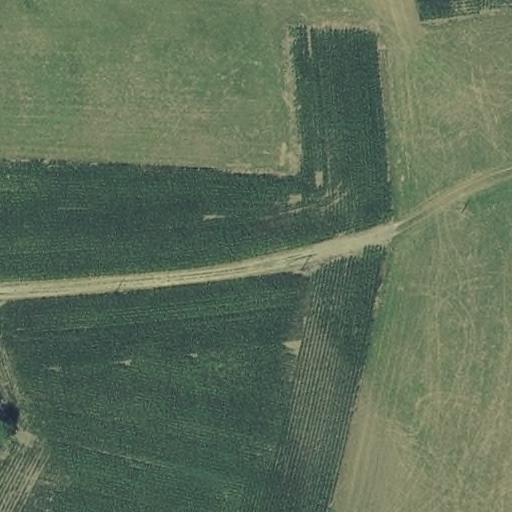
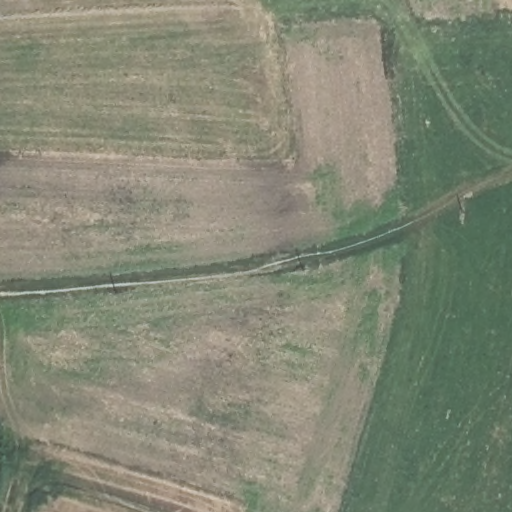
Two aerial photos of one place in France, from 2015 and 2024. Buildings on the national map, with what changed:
[]

